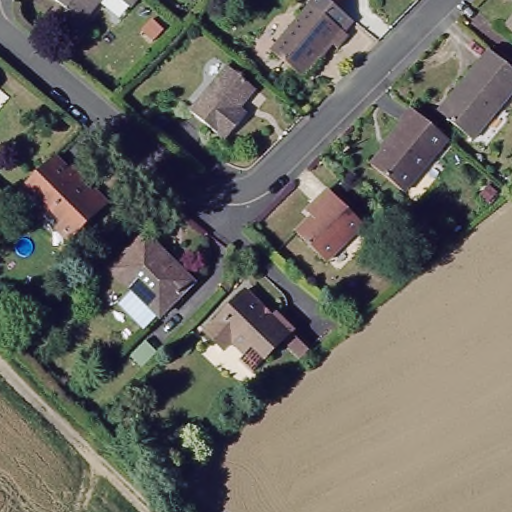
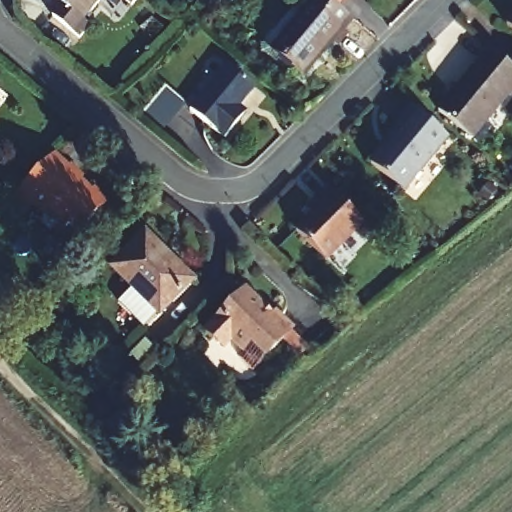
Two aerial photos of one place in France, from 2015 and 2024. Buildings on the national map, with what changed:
unchanged [(77,36),(51,14),(60,3),(56,0),(96,0),(80,19),(87,25),(77,36)]
unchanged [(125,8),(115,0),(132,0),(125,8)]
unchanged [(341,42),(334,36),(304,71),(271,44),(309,0),(337,0),(356,15),(346,26),(351,30),(341,42)]
unchanged [(512,14),(512,25),(507,20),(512,14)]
unchanged [(512,63),(512,89),(474,134),(440,106),(492,45),(512,63)]
unchanged [(232,59),(260,82),(237,109),(244,116),(230,133),(195,103),(232,59)]
unchanged [(449,135),(405,186),(371,158),(405,120),(400,116),(411,104),(449,135)]
unchanged [(60,226),(54,232),(42,221),(49,214),(36,203),(30,210),(14,196),(55,155),(92,190),(95,187),(110,202),(73,239),(60,226)]
unchanged [(327,205),(322,200),(335,187),(369,223),(330,258),(302,229),(327,205)]
unchanged [(121,261),(147,234),(196,282),(169,308),(121,261)]
unchanged [(242,356),(247,349),(235,338),(227,346),(209,328),(250,286),(267,303),(265,306),(272,312),(277,308),(296,325),(267,354),(255,367),(242,356)]

